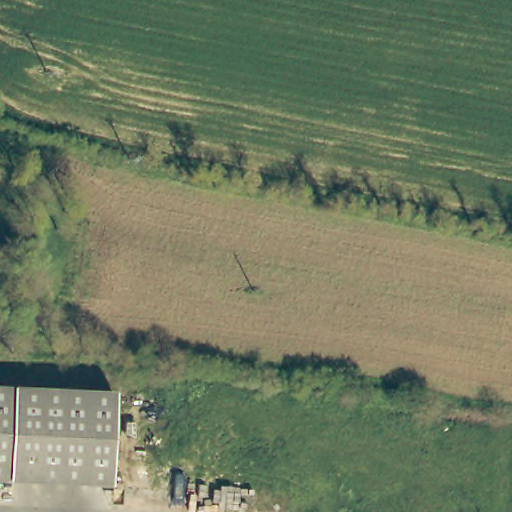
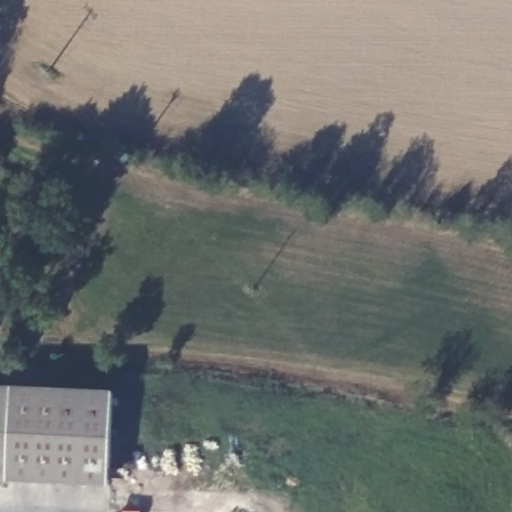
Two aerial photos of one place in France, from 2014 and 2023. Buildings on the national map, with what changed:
unchanged [(109,487),(0,481),(0,390),(114,396),(109,487)]

